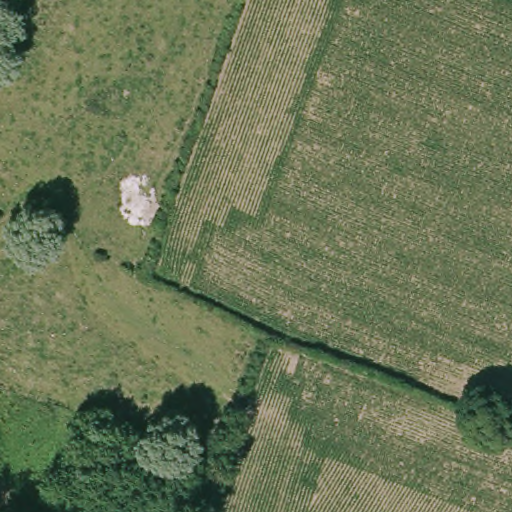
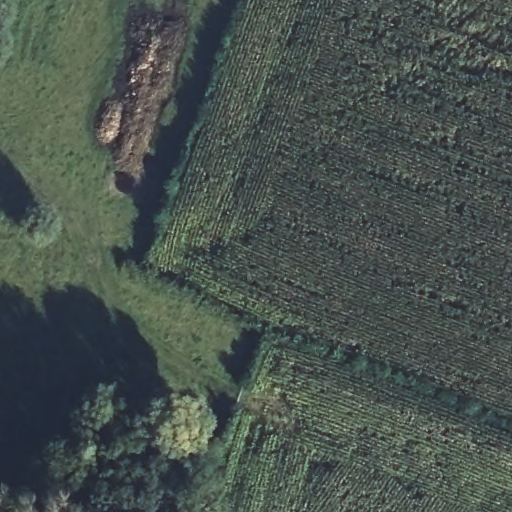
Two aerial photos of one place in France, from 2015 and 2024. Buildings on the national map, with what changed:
[]

